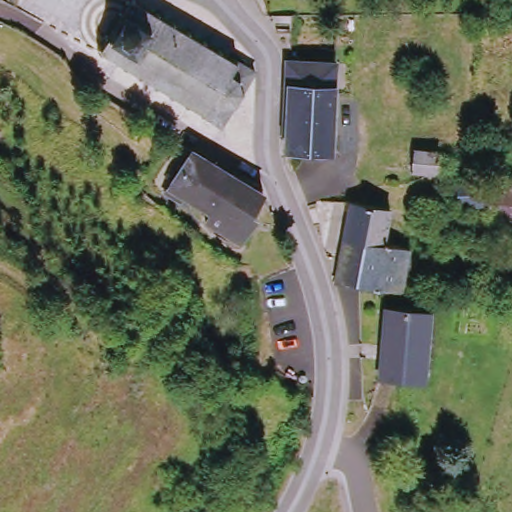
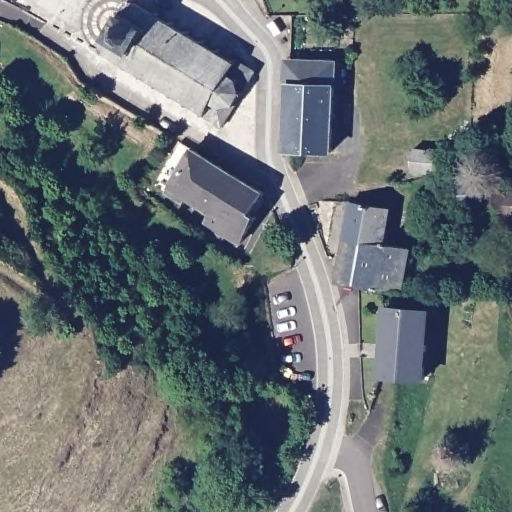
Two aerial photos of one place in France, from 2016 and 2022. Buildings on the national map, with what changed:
unchanged [(132,1),(152,13),(154,10),(158,12),(156,16),(167,22),(169,20),(172,22),(171,25),(182,31),(184,29),(187,31),(185,33),(198,41),(199,39),(203,41),(202,44),(213,50),(215,47),(218,50),(216,53),(228,60),(229,57),(252,71),(240,91),(240,95),(235,97),(235,104),(217,126),(197,112),(199,110),(186,101),(184,105),(181,102),(183,100),(172,92),(170,96),(166,94),(168,91),(155,82),(153,86),(150,84),(152,81),(140,73),(139,76),(135,74),(137,72),(102,49),(100,52),(97,51),(99,47),(95,45),(95,42),(97,42),(99,42),(99,44),(104,36),(101,34),(104,30),(107,32),(119,12),(115,11),(118,7),(121,9),(126,1),(124,0),(132,0),(132,1)]
unchanged [(292,85),(294,64),(340,67),(335,156),(288,153),(287,85),(292,85)]
unchanged [(420,164),(422,145),(453,147),(451,169),(420,164)]
unchanged [(275,200),(263,222),(266,223),(252,249),(217,229),(223,220),(197,202),(183,222),(164,205),(196,150),(275,200)]
unchanged [(488,185),(512,185),(512,226),(489,226),(488,185)]
unchanged [(335,287),(356,202),(394,211),(385,247),(412,254),(402,296),(360,291),(335,287)]
unchanged [(428,378),(389,382),(384,317),(422,312),(428,378)]
unchanged [(259,512),(251,512),(254,506),(261,508),(259,512)]

